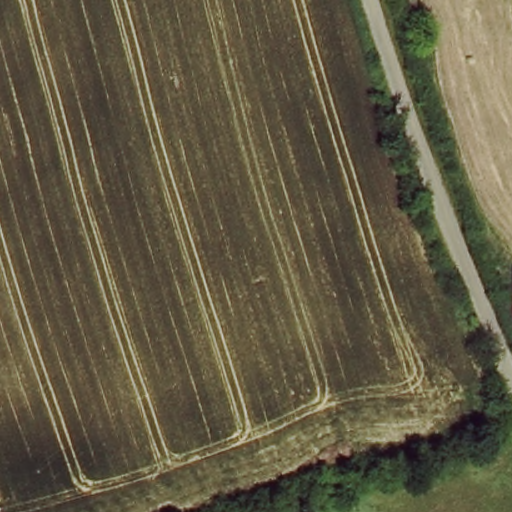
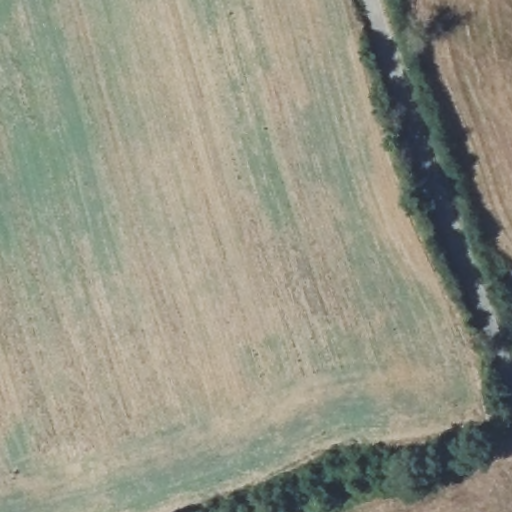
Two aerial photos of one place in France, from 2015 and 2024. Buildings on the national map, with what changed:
[]

